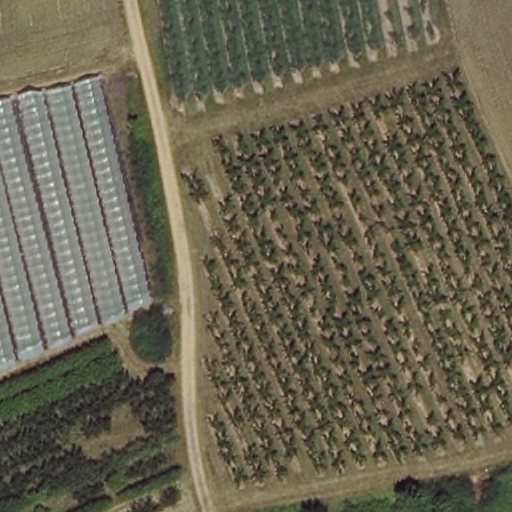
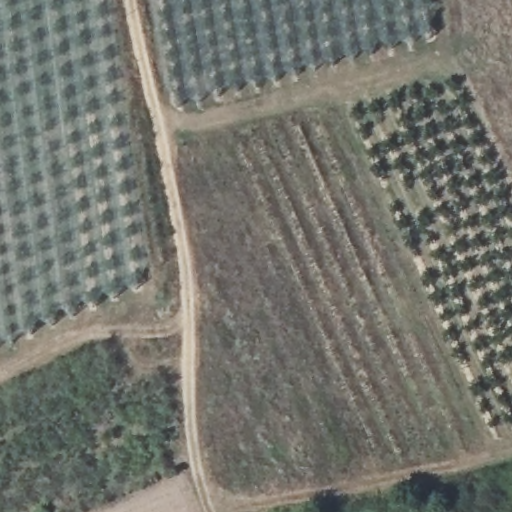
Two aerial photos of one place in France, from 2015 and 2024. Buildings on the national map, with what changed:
demolished [(98,83),(152,305),(0,367),(0,107),(98,83)]

